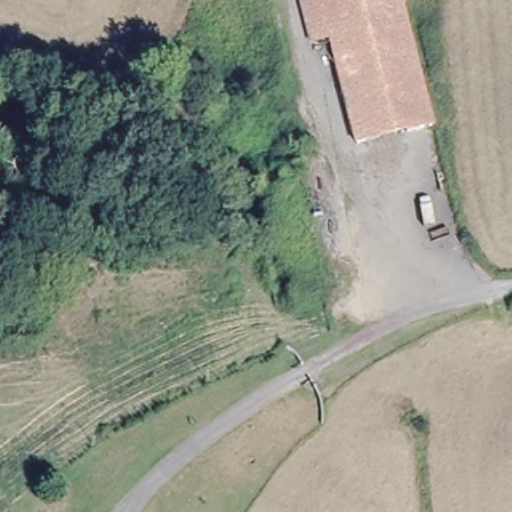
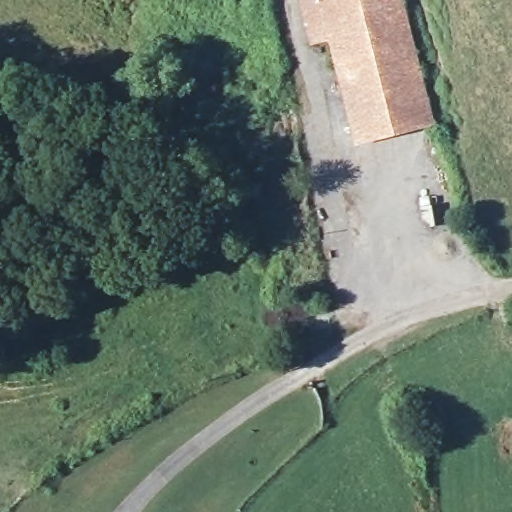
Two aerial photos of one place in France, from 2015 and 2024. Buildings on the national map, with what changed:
unchanged [(347,32),(326,42),(310,47),(298,0),(338,0),(347,32)]
unchanged [(338,0),(399,0),(433,124),(354,146),(326,42),(347,32),(338,0)]

